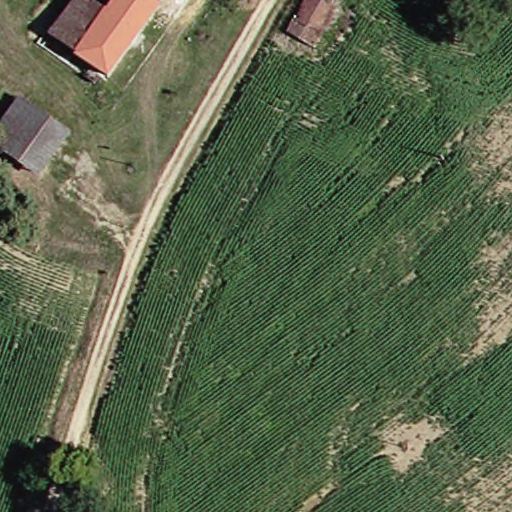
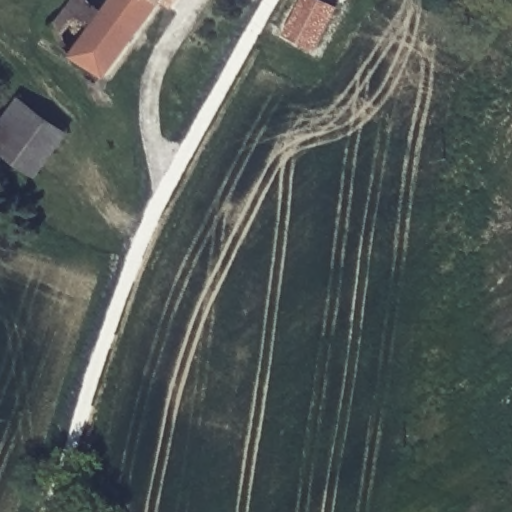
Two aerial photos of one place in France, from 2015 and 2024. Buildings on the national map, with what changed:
unchanged [(114,0),(164,0),(110,73),(51,32),(75,0),(104,0),(110,5),(114,0)]
unchanged [(316,45),(288,31),(304,0),(322,0),(337,6),(316,45)]
unchanged [(44,170),(0,139),(0,133),(13,116),(28,96),(72,130),(60,146),(44,170)]

